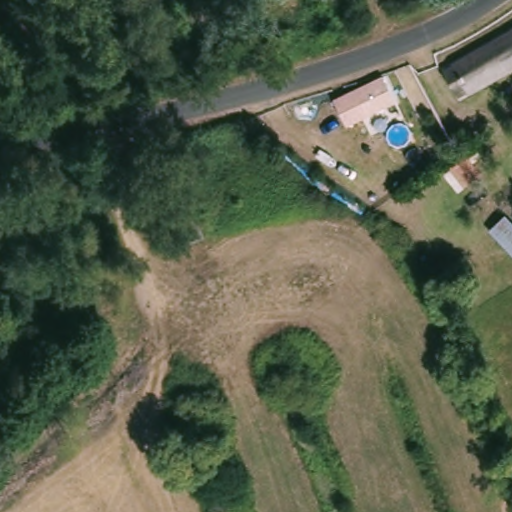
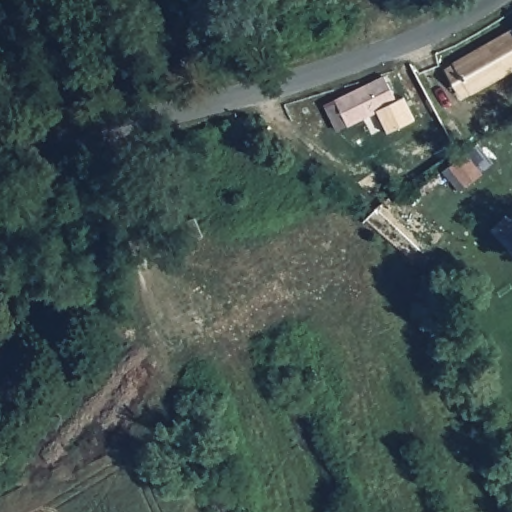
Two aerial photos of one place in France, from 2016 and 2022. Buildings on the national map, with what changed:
unchanged [(462,101),(446,73),(512,34),(512,71),(462,101)]
unchanged [(387,81),(395,105),(345,126),(336,105),(352,99),(387,81)]
unchanged [(164,218),(193,207),(201,225),(164,241),(155,221),(164,218)]

